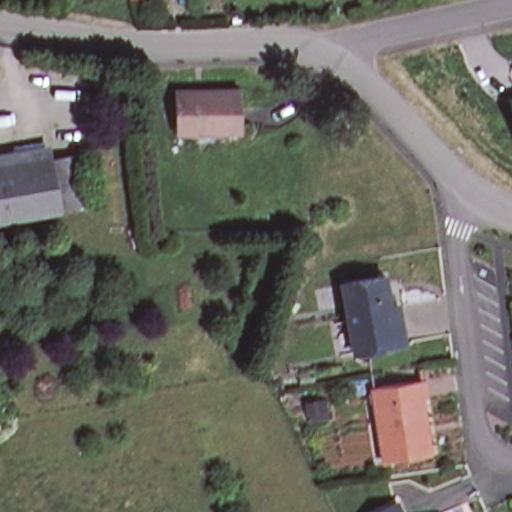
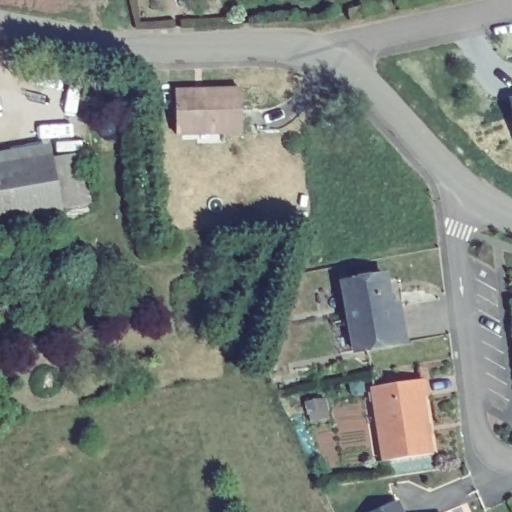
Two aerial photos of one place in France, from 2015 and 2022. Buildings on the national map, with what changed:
unchanged [(246,92),(245,131),(202,131),(202,137),(179,137),(179,94),(246,92)]
unchanged [(510,101),(512,101),(512,109),(511,104),(510,101)]
unchanged [(55,152),(57,157),(85,152),(90,203),(0,220),(0,162),(55,152)]
unchanged [(340,317),(355,315),(350,279),(392,272),(397,302),(404,301),(410,340),(360,347),(345,349),(340,317)]
unchanged [(392,465),(380,392),(434,384),(435,402),(430,402),(438,457),(392,465)]
unchanged [(410,512),(387,512),(407,504),(410,512)]

